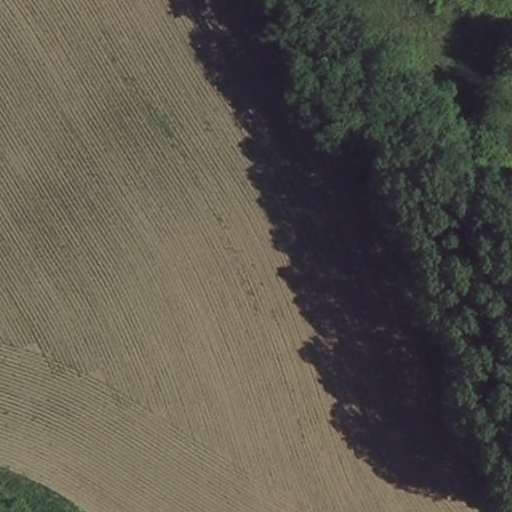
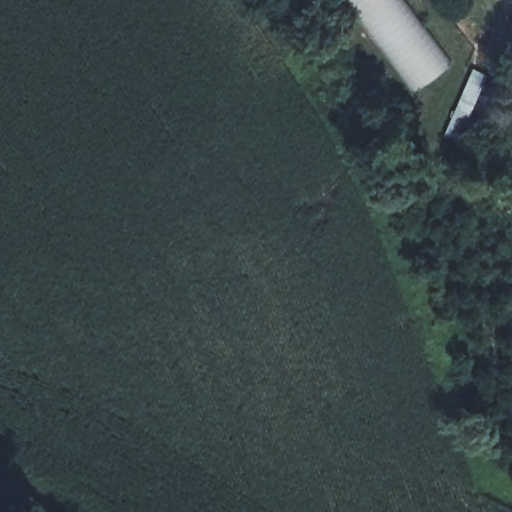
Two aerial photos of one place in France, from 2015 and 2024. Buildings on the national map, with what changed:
new [(446,62),(408,89),(342,0),(400,0),(446,62)]

